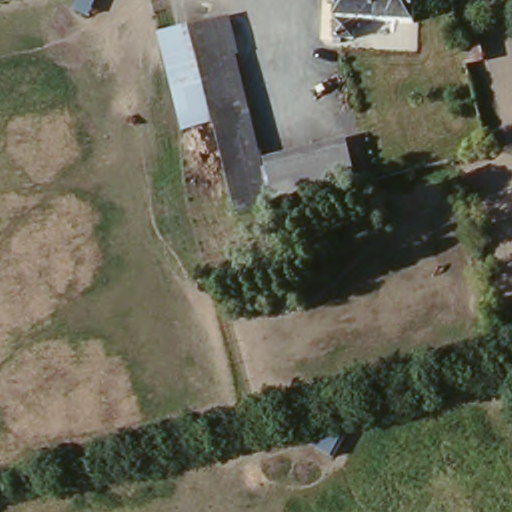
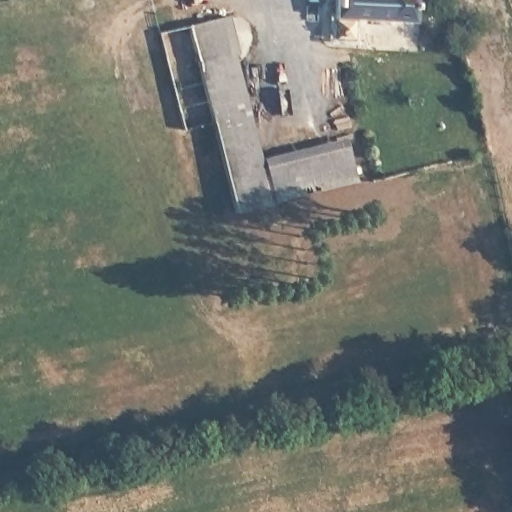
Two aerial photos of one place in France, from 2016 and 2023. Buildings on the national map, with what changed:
unchanged [(414,0),(413,18),(354,14),(352,34),(332,34),(334,0),(414,0)]
unchanged [(236,212),(213,124),(181,129),(156,29),(226,8),(263,155),(347,131),(359,176),(236,212)]
unchanged [(475,30),(482,59),(468,64),(460,34),(475,30)]

